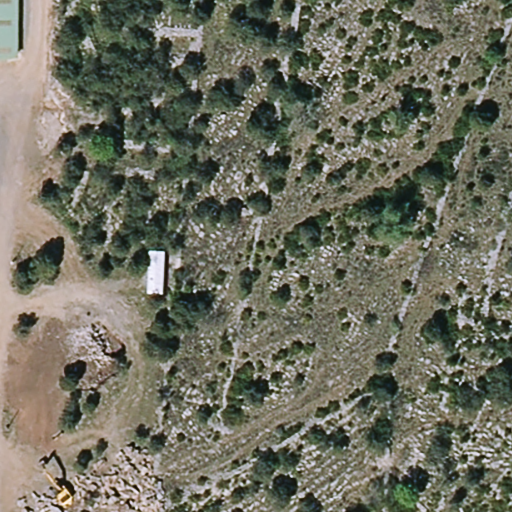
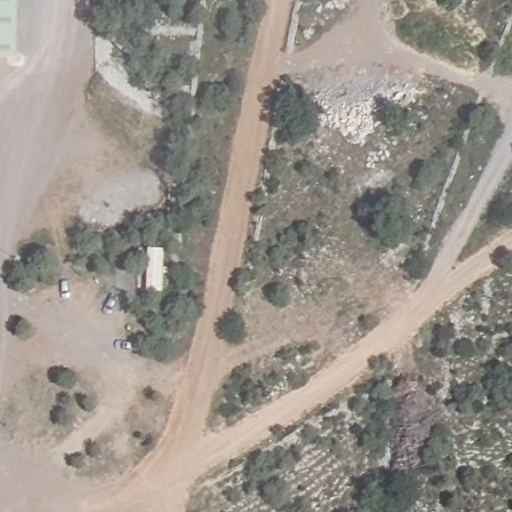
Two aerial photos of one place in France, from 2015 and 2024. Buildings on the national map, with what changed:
unchanged [(18,57),(0,57),(0,0),(19,0),(18,57)]

